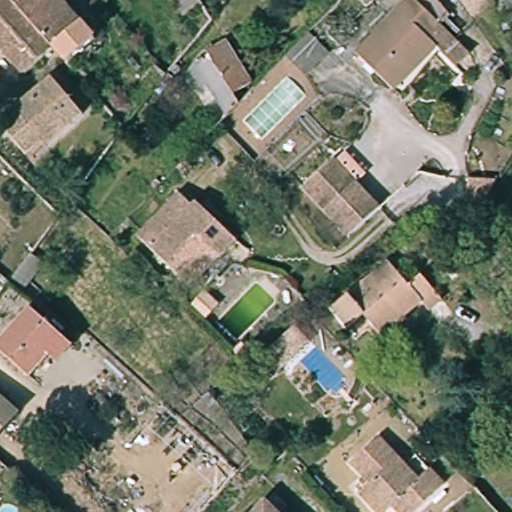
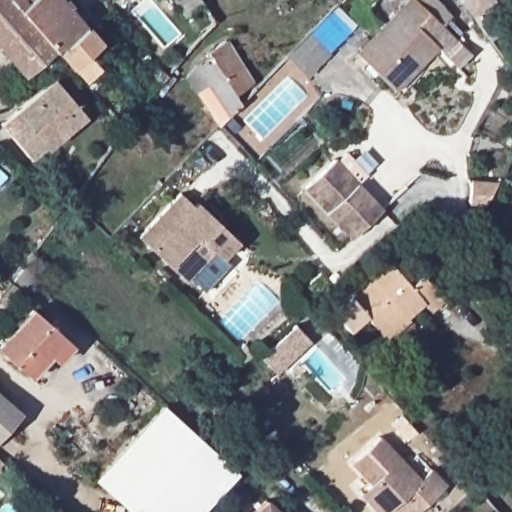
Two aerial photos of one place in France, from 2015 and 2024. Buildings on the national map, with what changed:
unchanged [(18,81),(9,72),(15,63),(0,46),(0,0),(60,0),(75,16),(90,31),(62,57),(50,44),(18,81)]
unchanged [(205,12),(185,23),(170,0),(199,0),(205,12)]
unchanged [(341,5),(336,0),(348,0),(341,5)]
unchanged [(413,0),(421,0),(438,29),(436,29),(459,67),(444,76),(429,51),(377,82),(351,37),(413,0)]
unchanged [(368,10),(360,0),(379,0),(368,10)]
new [(497,4),(471,16),(460,0),(495,0),(497,4)]
demolished [(465,0),(498,0),(500,4),(475,16),(465,0)]
unchanged [(238,96),(243,103),(225,120),(206,94),(192,98),(179,77),(204,57),(202,52),(227,34),(255,83),(238,96)]
unchanged [(315,72),(307,77),(287,57),(309,34),(328,53),(315,72)]
unchanged [(8,116),(46,82),(79,118),(41,152),(8,116)]
unchanged [(307,184),(337,157),(382,207),(351,233),(307,184)]
unchanged [(487,204),(473,203),(475,181),(500,183),(487,204)]
unchanged [(221,264),(208,256),(185,280),(132,237),(177,190),(190,201),(194,196),(240,245),(221,264)]
unchanged [(390,267),(405,282),(414,276),(439,303),(428,315),(421,308),(381,342),(362,316),(347,329),(335,314),(390,267)]
unchanged [(33,307),(62,338),(22,375),(0,351),(0,337),(33,307)]
new [(293,322),(307,339),(271,370),(257,353),(293,322)]
unchanged [(24,409),(0,437),(0,389),(24,409)]
new [(236,472),(201,512),(129,512),(95,482),(162,406),(236,472)]
unchanged [(425,482),(437,472),(451,487),(425,512),(406,512),(401,506),(395,512),(375,488),(380,482),(361,462),(385,441),(425,482)]
unchanged [(279,512),(265,512),(272,505),(279,512)]

